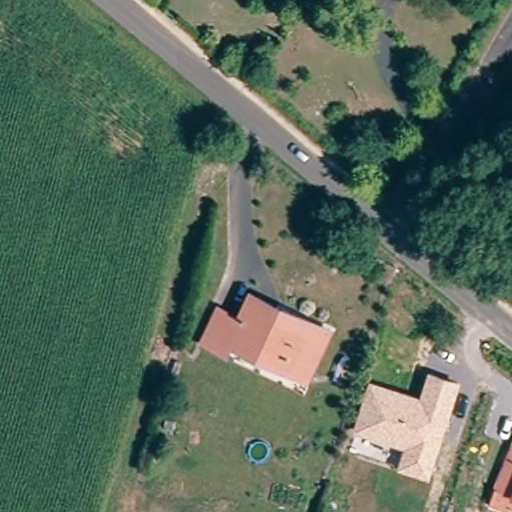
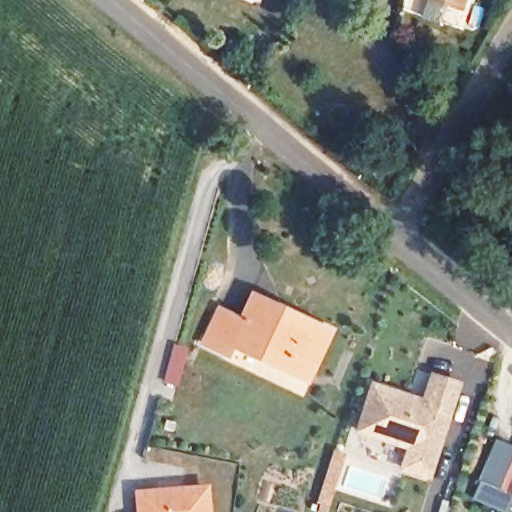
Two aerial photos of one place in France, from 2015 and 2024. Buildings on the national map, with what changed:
new [(437,0),(465,0),(462,9),(437,0)]
unchanged [(311,378),(235,344),(231,355),(205,343),(221,306),(242,316),(248,302),(252,294),(275,305),(331,330),(311,378)]
unchanged [(432,480),(399,468),(405,448),(355,430),(371,380),(422,396),(430,371),(462,380),(432,480)]
unchanged [(489,506),(512,455),(512,512),(501,512),(489,506)]
new [(144,495),(212,489),(214,512),(146,512),(144,495)]

